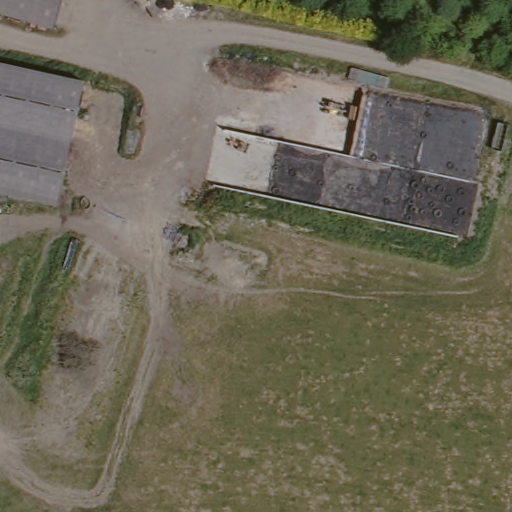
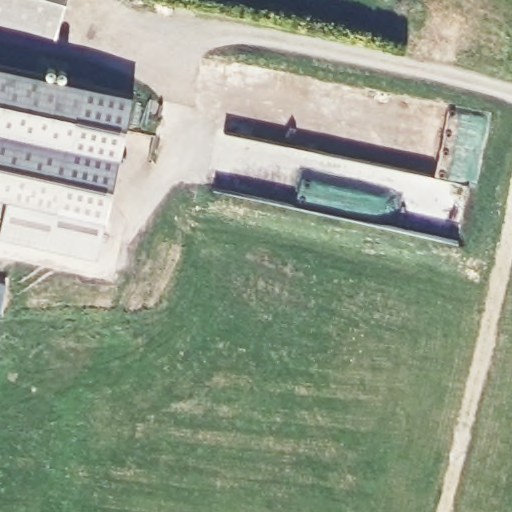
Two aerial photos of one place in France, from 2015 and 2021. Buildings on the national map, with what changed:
unchanged [(0,12),(0,0),(68,0),(59,31),(0,12)]
unchanged [(61,210),(0,195),(0,60),(86,79),(61,210)]
new [(61,210),(86,79),(132,92),(97,256),(1,235),(8,197),(61,210)]

